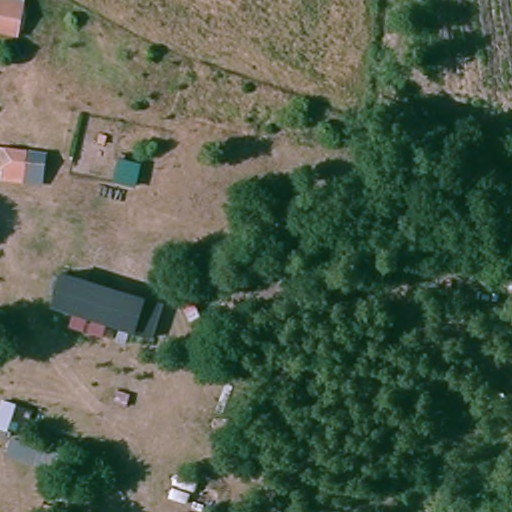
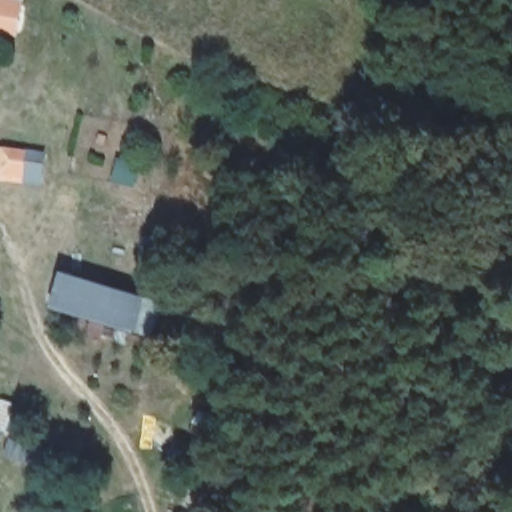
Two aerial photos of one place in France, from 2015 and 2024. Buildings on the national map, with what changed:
unchanged [(0,33),(0,0),(26,0),(19,38),(0,33)]
unchanged [(37,154),(32,188),(9,185),(9,175),(0,174),(0,155),(1,149),(37,154)]
unchanged [(174,305),(165,340),(60,309),(70,274),(174,305)]

